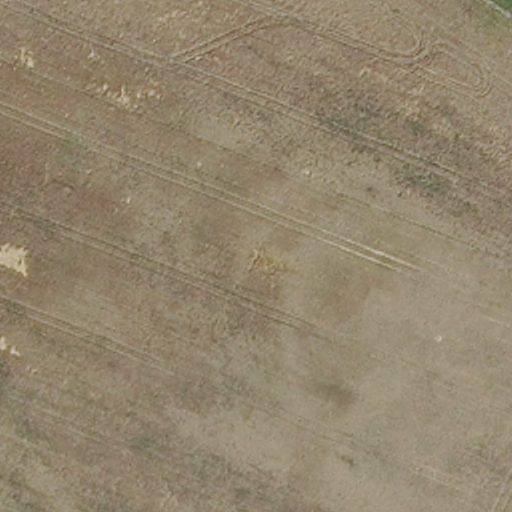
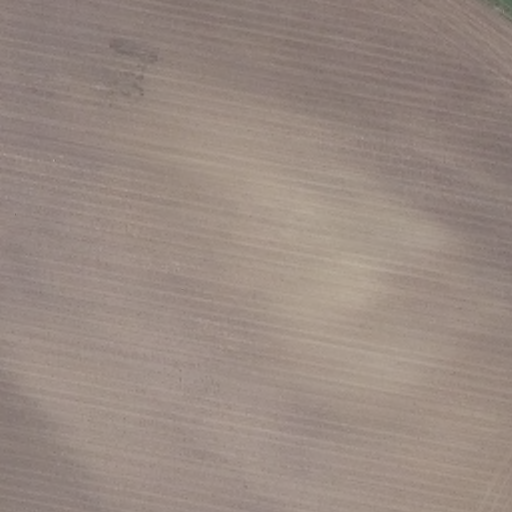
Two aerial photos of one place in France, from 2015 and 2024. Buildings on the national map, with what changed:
[]

